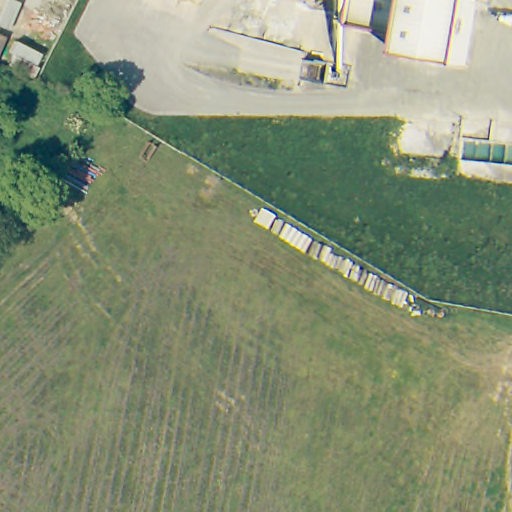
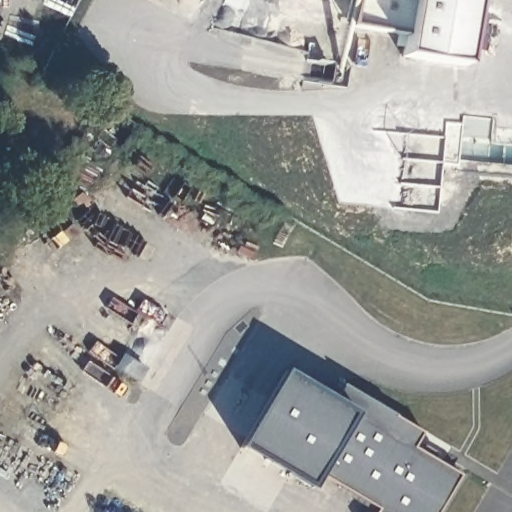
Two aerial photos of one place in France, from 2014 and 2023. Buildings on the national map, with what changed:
unchanged [(441,57),(403,51),(406,31),(352,22),(356,0),(477,0),(467,62),(441,57)]
new [(342,385),(421,433),(412,448),(460,476),(438,512),(376,512),(377,510),(319,473),(312,488),(242,447),(288,371),(338,402),(342,385)]

